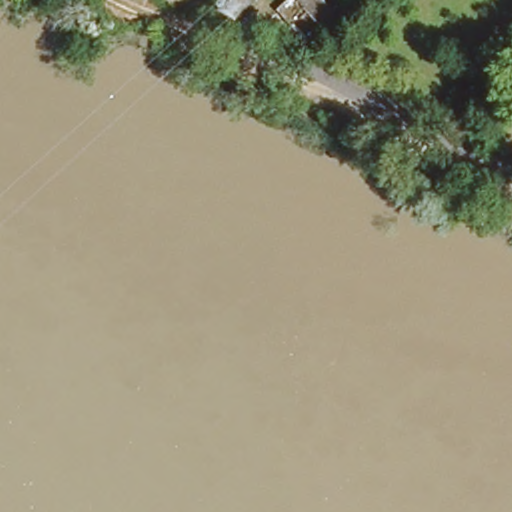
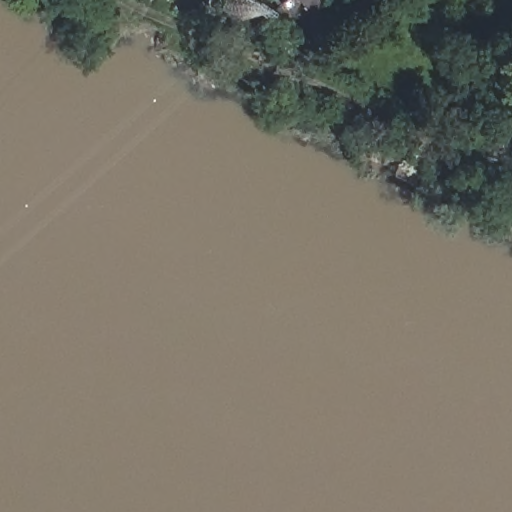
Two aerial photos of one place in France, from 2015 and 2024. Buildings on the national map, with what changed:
unchanged [(269,17),(287,1),(317,37),(300,51),(269,17)]

